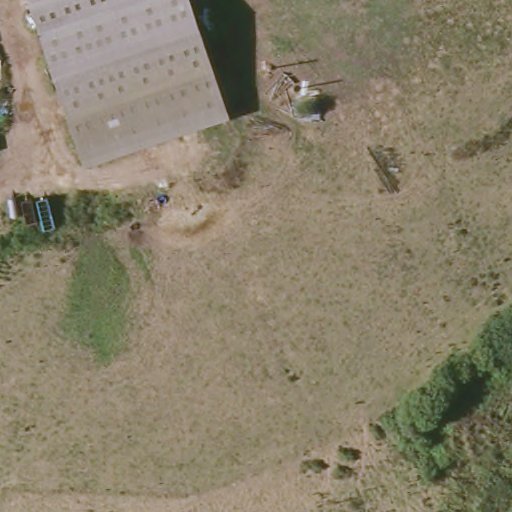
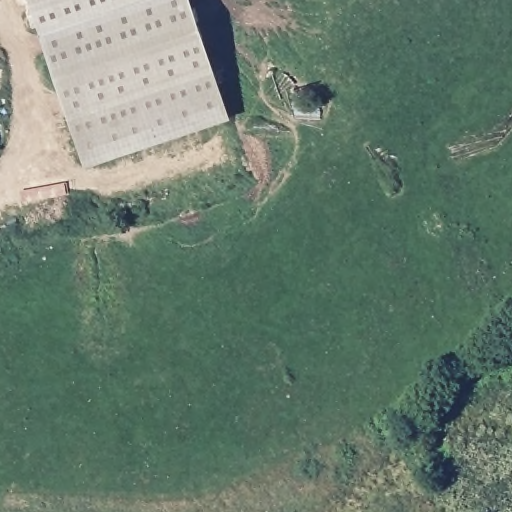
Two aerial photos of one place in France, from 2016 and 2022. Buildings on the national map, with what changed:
unchanged [(38,35),(25,0),(126,0),(38,35)]
unchanged [(79,150),(38,35),(126,0),(186,0),(221,104),(224,112),(172,134),(85,167),(79,150)]

